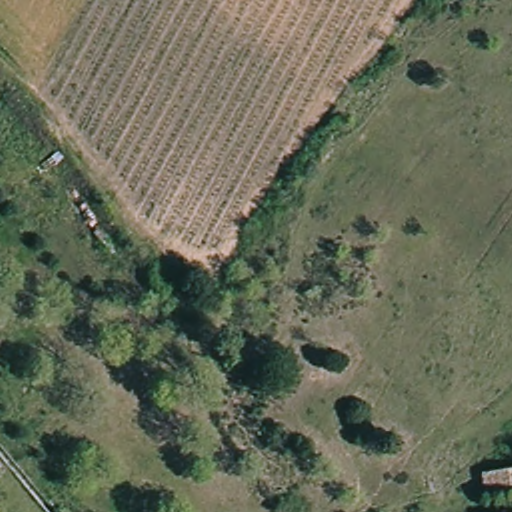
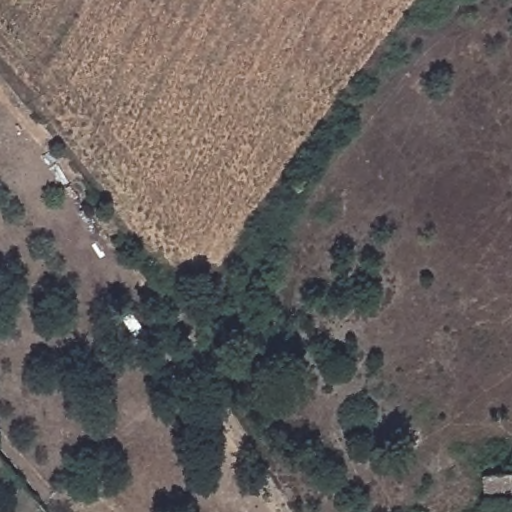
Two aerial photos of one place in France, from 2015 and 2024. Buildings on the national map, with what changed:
unchanged [(512,491),(485,496),(482,471),(512,466),(512,491)]

